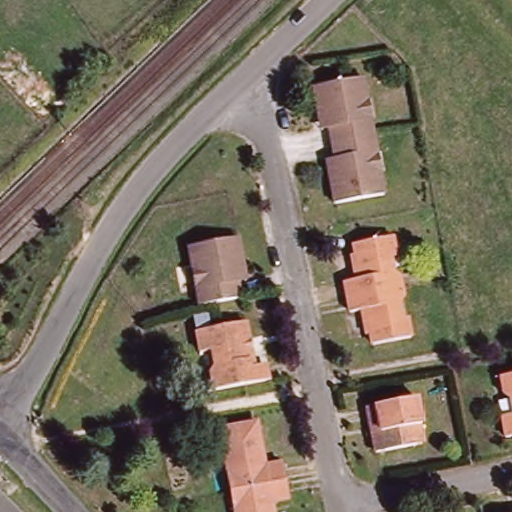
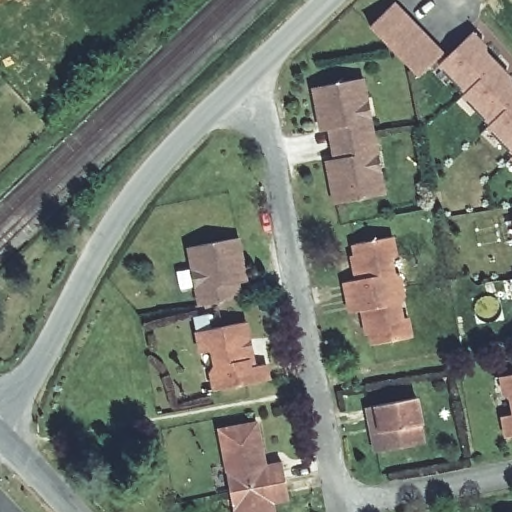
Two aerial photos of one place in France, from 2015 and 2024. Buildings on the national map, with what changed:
new [(394,4),(443,54),(419,76),(371,27),(394,4)]
new [(470,35),(497,65),(494,67),(512,86),(512,155),(488,128),(489,126),(463,97),(466,94),(439,65),(470,35)]
unchanged [(370,82),(388,198),(334,206),(329,170),(340,168),(334,126),(322,128),(317,90),(370,82)]
unchanged [(192,247),(243,239),(248,274),(238,275),(240,298),(201,304),(192,247)]
unchanged [(352,312),(348,284),(362,282),(356,244),(393,239),(408,338),(372,344),(367,310),(352,312)]
unchanged [(249,320),(255,364),(265,364),(269,379),(217,388),(211,350),(198,352),(194,328),(249,320)]
unchanged [(508,376),(512,375),(512,409),(508,376)]
unchanged [(420,445),(379,451),(373,404),(419,398),(424,424),(429,444),(420,445)]
unchanged [(503,438),(499,415),(512,413),(512,436),(503,438)]
unchanged [(224,432),(260,426),(265,466),(286,463),(291,499),(272,501),(273,512),(235,512),(224,432)]

